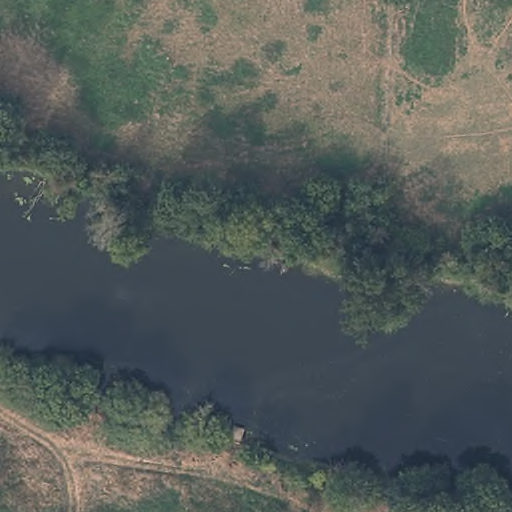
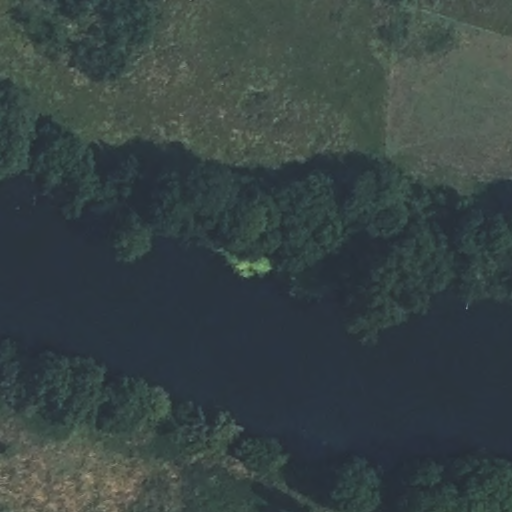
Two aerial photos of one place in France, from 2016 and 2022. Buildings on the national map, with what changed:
[]

